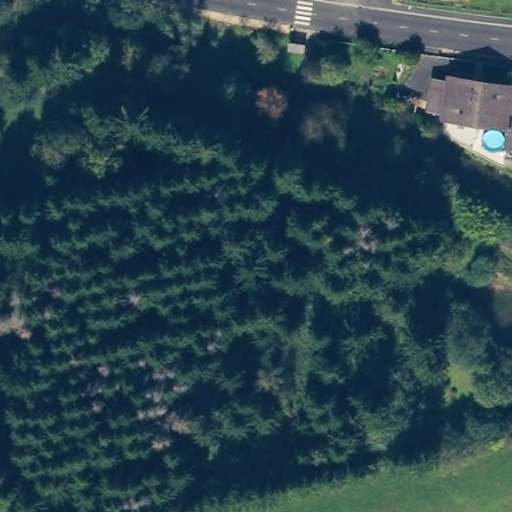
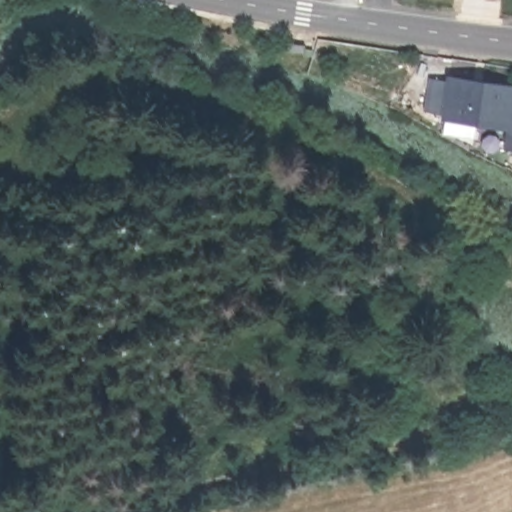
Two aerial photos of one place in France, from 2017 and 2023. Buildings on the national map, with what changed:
unchanged [(452,80),(453,77),(512,87),(512,152),(507,152),(509,135),(448,124),(448,115),(430,113),(435,79),(452,80)]

